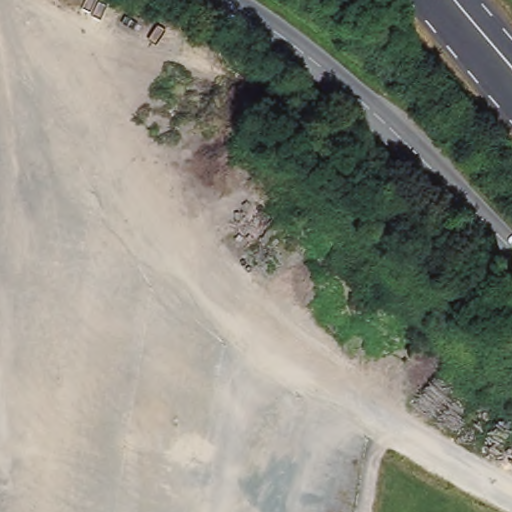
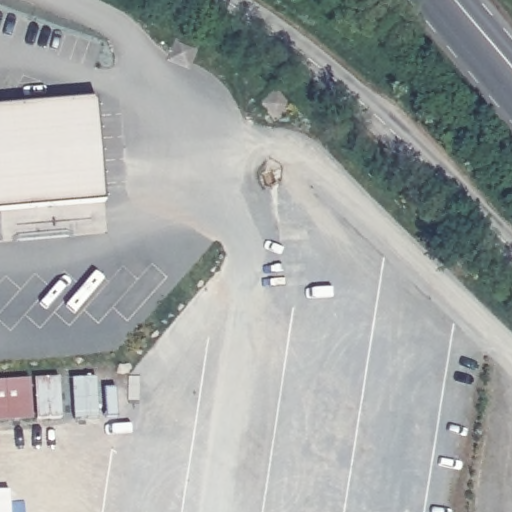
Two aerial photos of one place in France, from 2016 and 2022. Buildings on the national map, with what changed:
new [(103,199),(0,204),(0,100),(98,96),(103,199)]
new [(36,418),(33,379),(58,376),(61,417),(36,418)]
new [(0,381),(30,379),(32,418),(0,420),(0,381)]

